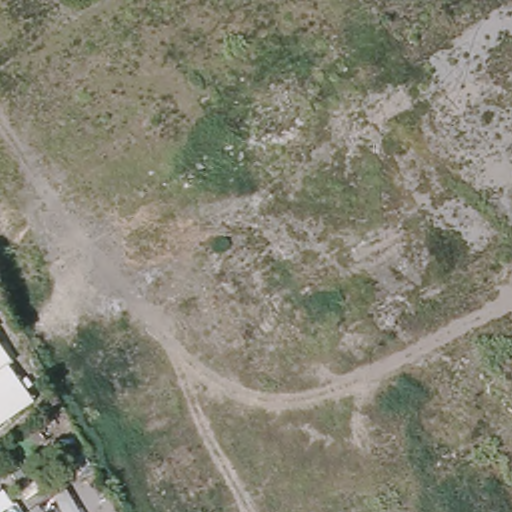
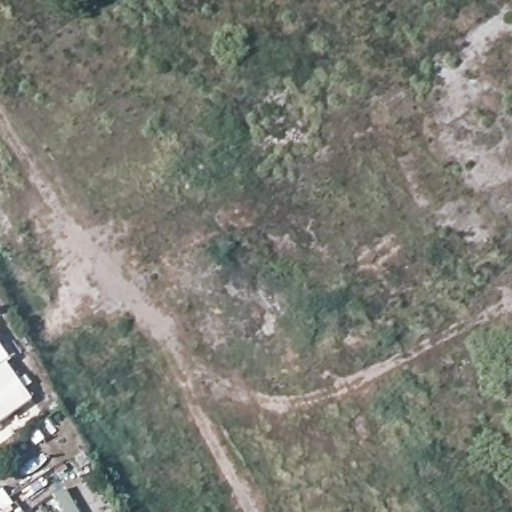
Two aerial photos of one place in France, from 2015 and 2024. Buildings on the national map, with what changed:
unchanged [(15,360),(9,365),(37,402),(0,428),(0,339),(15,360)]

